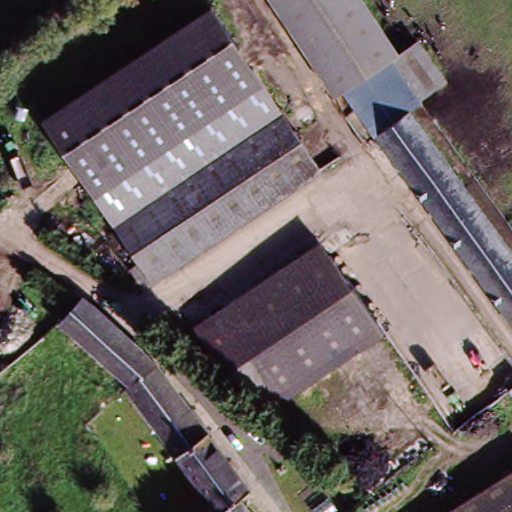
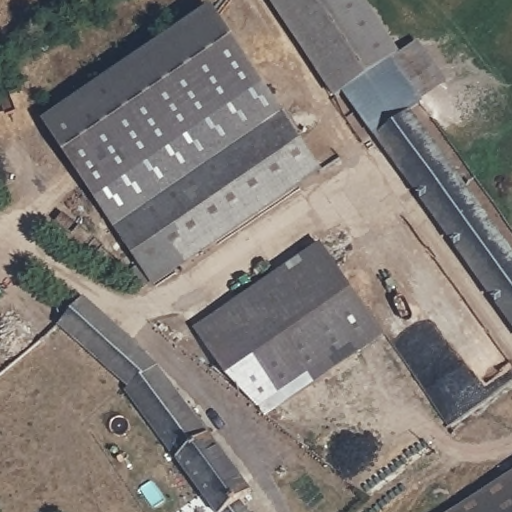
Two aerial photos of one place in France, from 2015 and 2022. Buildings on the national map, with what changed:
unchanged [(352,95),(340,102),(268,0),(340,0),(390,68),(410,54),(438,95),(413,115),(382,139),(352,95)]
unchanged [(147,281),(157,273),(52,130),(210,14),(322,170),(165,284),(163,282),(153,289),(147,281)]
unchanged [(413,115),(414,116),(512,252),(512,320),(382,139),(413,115)]
unchanged [(323,249),(386,338),(275,418),(231,372),(205,334),(323,249)]
unchanged [(136,399),(140,395),(70,329),(93,302),(170,375),(262,497),(250,506),(255,512),(225,512),(136,399)]
unchanged [(512,401),(510,402),(501,391),(512,382),(512,401)]
unchanged [(512,512),(463,512),(512,481),(512,512)]

